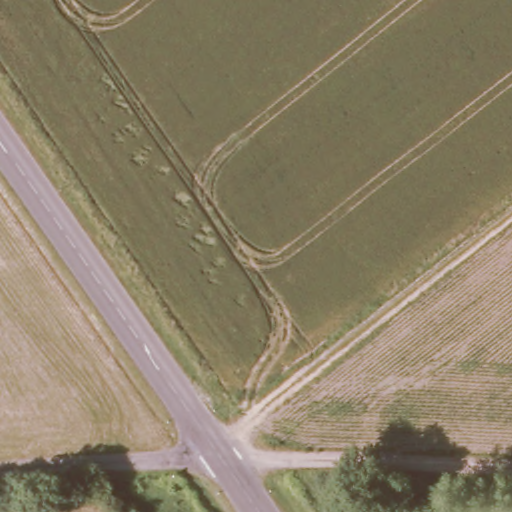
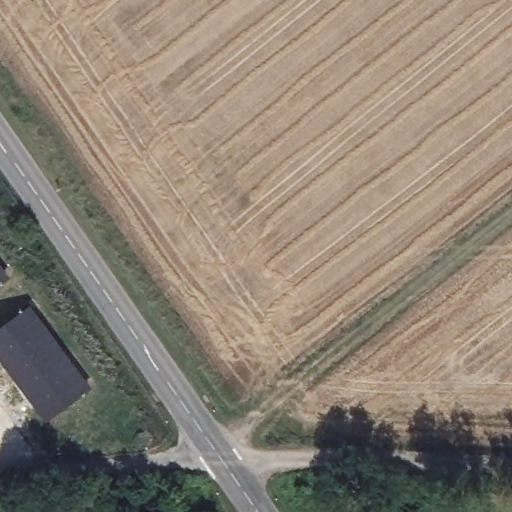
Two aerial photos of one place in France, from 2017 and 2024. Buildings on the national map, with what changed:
new [(12,276),(0,285),(0,260),(12,276)]
new [(0,356),(0,330),(33,305),(93,387),(48,421),(0,356)]

